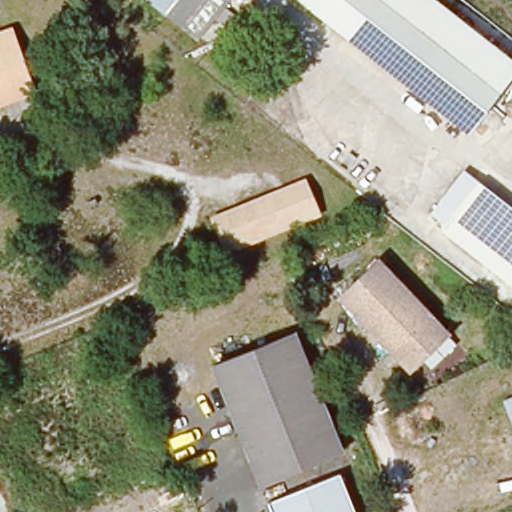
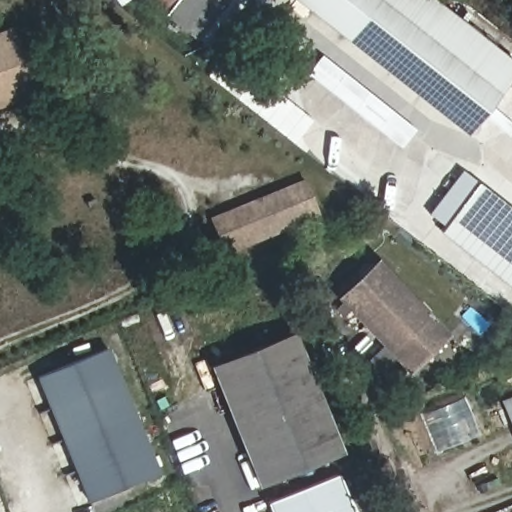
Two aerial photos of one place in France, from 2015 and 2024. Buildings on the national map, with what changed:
unchanged [(167,13),(151,0),(229,0),(227,2),(200,40),(165,15),(167,13)]
unchanged [(298,0),(437,0),(512,55),(512,71),(469,130),(298,0)]
unchanged [(0,94),(0,32),(16,26),(38,78),(0,94)]
unchanged [(227,251),(213,220),(305,179),(320,211),(227,251)]
unchanged [(471,181),(512,212),(512,233),(461,195),(471,181)]
unchanged [(461,195),(512,233),(512,287),(435,230),(461,195)]
unchanged [(420,374),(344,310),(375,271),(452,336),(420,374)]
unchanged [(269,481),(218,363),(294,329),(343,448),(269,481)]
new [(87,502),(36,376),(108,348),(160,472),(87,502)]
unchanged [(512,423),(505,405),(512,403),(512,423)]
unchanged [(268,499),(343,467),(361,512),(274,512),(268,499)]

